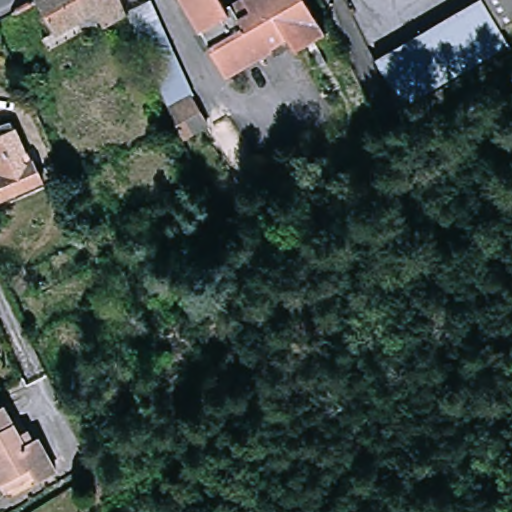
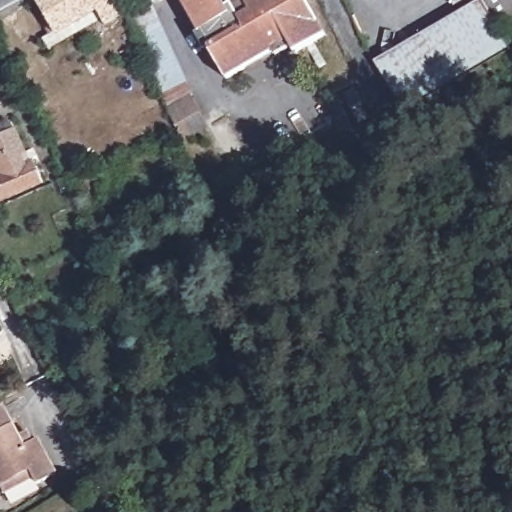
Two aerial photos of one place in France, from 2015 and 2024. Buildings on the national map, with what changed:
unchanged [(133,16),(62,51),(38,0),(126,0),(131,12),(133,15),(133,16)]
unchanged [(290,56),(284,45),(219,75),(185,0),(304,0),(322,41),(290,56)]
unchanged [(504,51),(472,70),(446,17),(476,0),(512,0),(512,29),(496,38),(504,51)]
unchanged [(133,16),(133,15),(131,12),(155,3),(194,91),(173,105),(133,16)]
unchanged [(371,60),(446,17),(472,70),(391,116),(371,60)]
unchanged [(173,105),(194,91),(211,127),(190,143),(167,109),(173,105)]
unchanged [(21,128),(46,185),(1,205),(0,201),(0,176),(5,174),(0,164),(0,137),(21,128)]
unchanged [(10,404),(30,445),(46,437),(65,472),(43,483),(35,466),(7,481),(0,467),(0,409),(10,404)]

